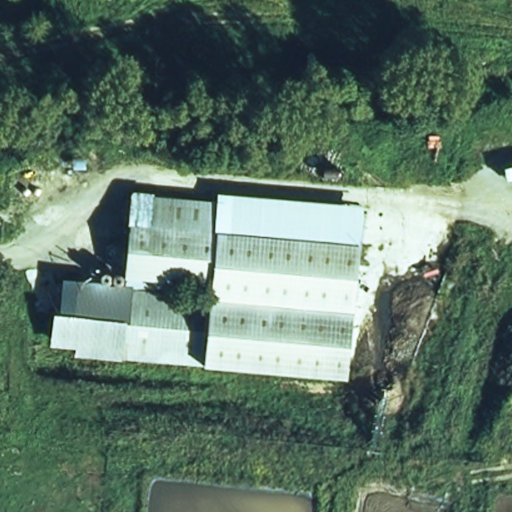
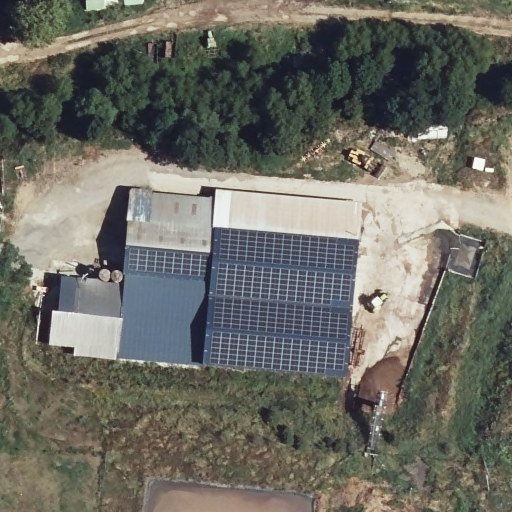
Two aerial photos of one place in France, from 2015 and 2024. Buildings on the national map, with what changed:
unchanged [(50,313),(71,313),(75,279),(120,281),(128,192),(213,200),(214,191),(362,204),(344,380),(73,357),(72,348),(47,346),(50,313)]

